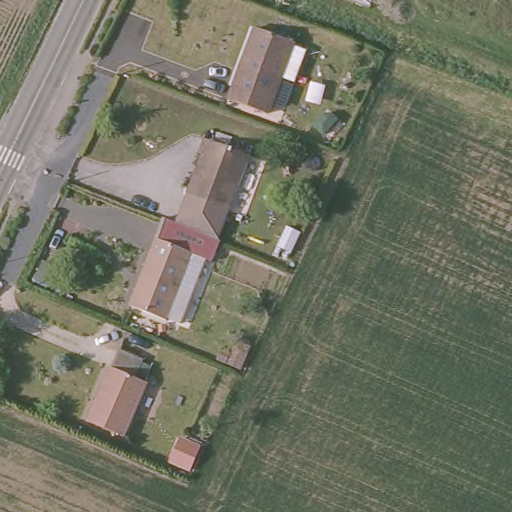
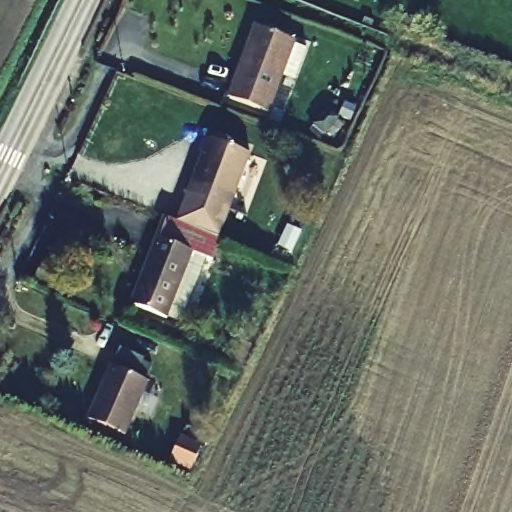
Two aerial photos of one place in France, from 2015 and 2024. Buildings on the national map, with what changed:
unchanged [(259,23),(313,44),(299,77),(285,71),(270,109),(231,94),(236,78),(259,23)]
unchanged [(197,150),(192,147),(199,130),(245,149),(210,236),(198,231),(169,220),(197,150)]
unchanged [(130,304),(167,219),(169,220),(198,231),(210,236),(224,242),(215,263),(193,255),(165,320),(130,304)]
unchanged [(127,429),(90,412),(107,376),(114,361),(117,362),(126,343),(150,354),(141,373),(152,378),(127,429)]

